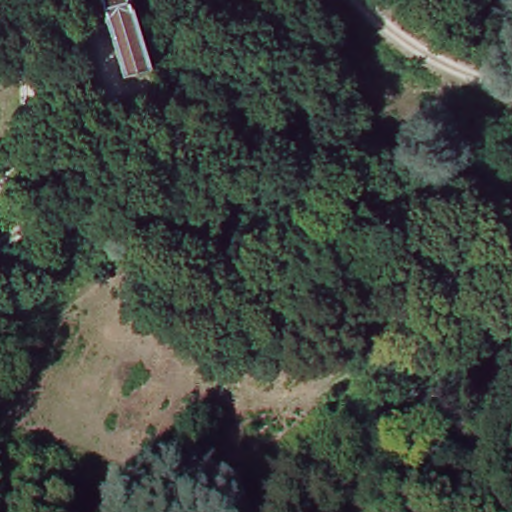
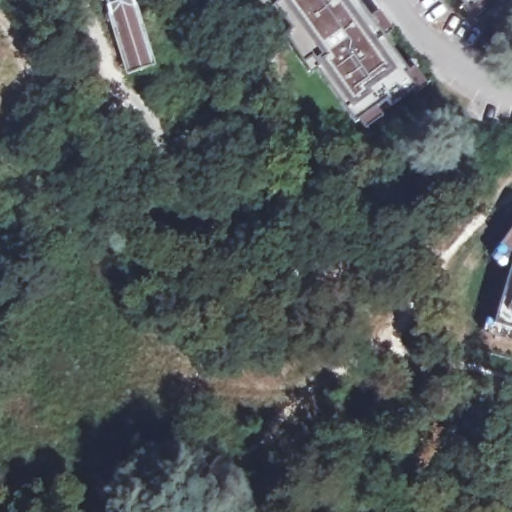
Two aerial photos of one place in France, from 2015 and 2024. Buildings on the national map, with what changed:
unchanged [(105,0),(134,0),(154,63),(128,70),(105,0)]
new [(273,5),(277,0),(354,0),(406,73),(403,75),(412,88),(388,104),(385,99),(354,121),(315,68),(317,67),(310,56),(302,62),(285,35),(291,30),(273,5)]
new [(467,8),(460,0),(477,0),(472,4),(467,8)]
new [(512,258),(512,360),(484,351),(512,258)]

